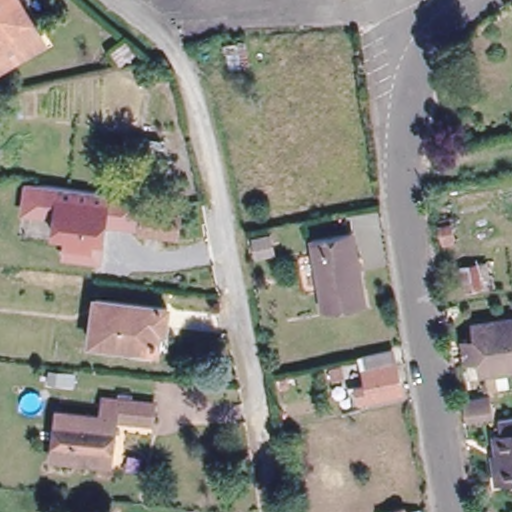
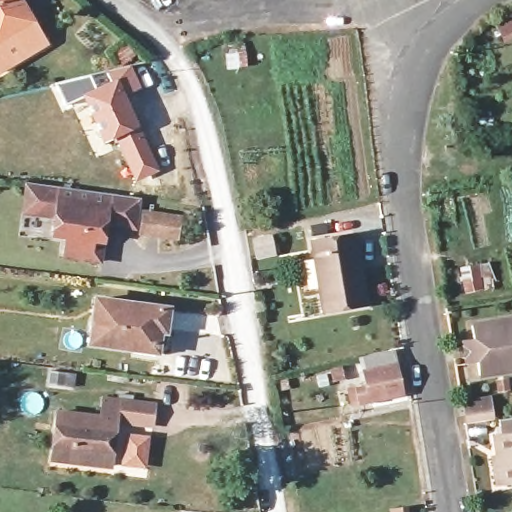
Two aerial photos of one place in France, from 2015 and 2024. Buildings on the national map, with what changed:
unchanged [(0,0),(22,0),(48,44),(0,71),(0,0)]
new [(115,52),(127,44),(135,55),(129,60),(141,88),(125,95),(160,171),(135,182),(115,139),(102,144),(81,96),(63,105),(54,83),(92,75),(121,65),(115,52)]
unchanged [(66,259),(69,239),(55,237),(57,219),(41,217),(25,215),(29,186),(45,188),(110,196),(140,200),(135,230),(106,227),(101,264),(66,259)]
unchanged [(177,240),(142,235),(145,215),(180,220),(177,240)]
unchanged [(316,236),(359,228),(366,273),(325,282),(316,236)]
unchanged [(280,246),(261,249),(258,234),(277,229),(280,246)]
unchanged [(366,273),(371,299),(328,309),(325,282),(366,273)]
unchanged [(167,333),(161,333),(159,351),(92,342),(99,299),(171,308),(167,333)]
unchanged [(463,333),(475,332),(473,315),(512,309),(512,359),(480,364),(480,354),(465,356),(463,333)]
unchanged [(396,349),(403,392),(371,397),(365,356),(396,349)]
unchanged [(151,424),(116,419),(111,462),(52,454),(59,407),(101,411),(104,394),(155,401),(151,424)]
unchanged [(497,414),(472,419),(470,400),(494,396),(497,414)]
unchanged [(498,454),(503,454),(501,434),(507,433),(505,417),(512,416),(512,482),(508,483),(502,484),(498,454)]
new [(120,465),(125,432),(151,434),(147,468),(120,465)]

